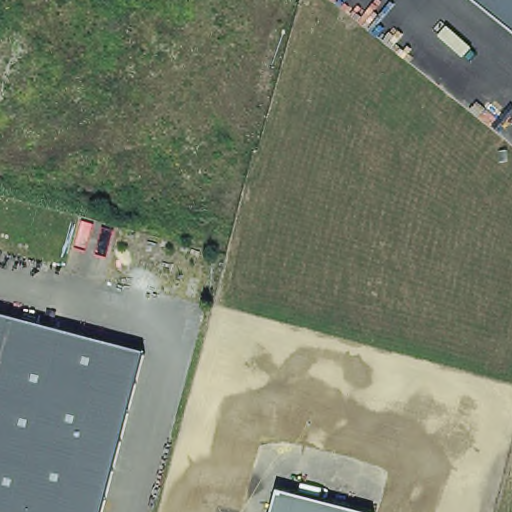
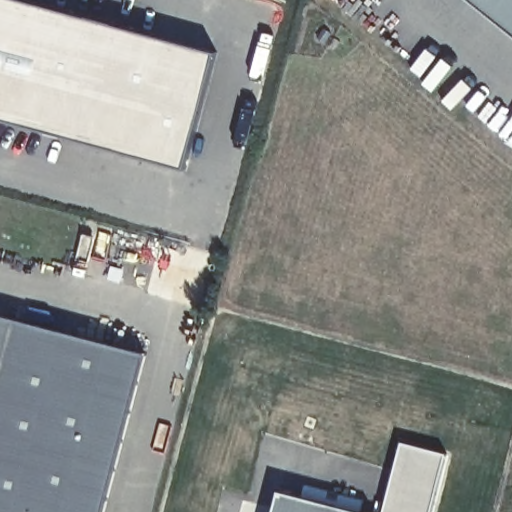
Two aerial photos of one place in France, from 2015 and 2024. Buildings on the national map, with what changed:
new [(194,172),(0,120),(0,0),(22,0),(226,55),(194,172)]
unchanged [(473,0),(512,0),(512,32),(473,0)]
unchanged [(108,512),(0,512),(0,313),(151,353),(108,512)]
new [(453,457),(438,512),(390,512),(409,443),(453,457)]
unchanged [(359,512),(274,512),(280,491),(359,512)]

